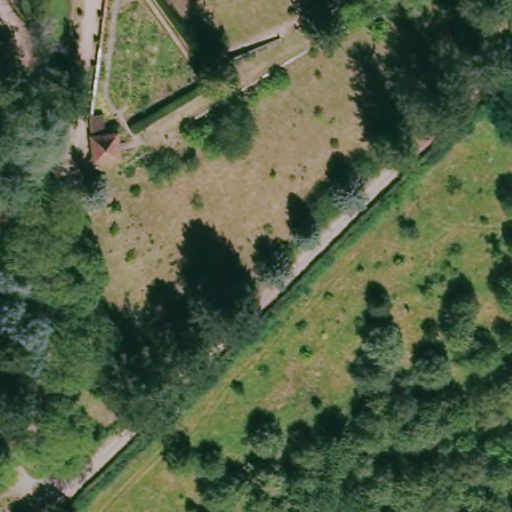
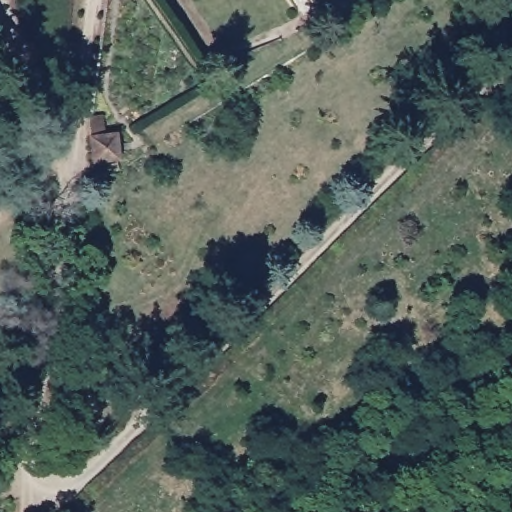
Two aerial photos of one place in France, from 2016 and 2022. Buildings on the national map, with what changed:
unchanged [(100,148),(98,137),(115,131),(123,151),(107,160),(103,162),(100,148)]

